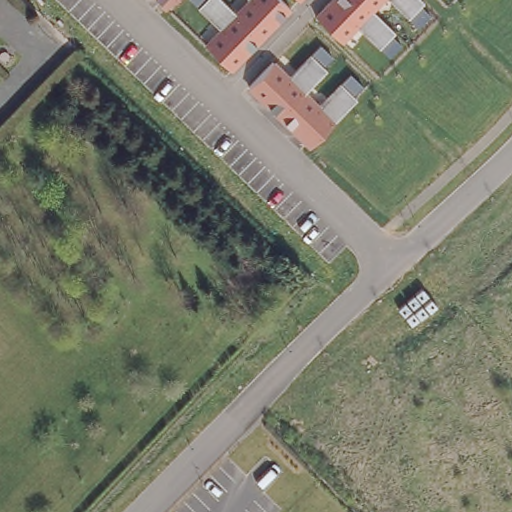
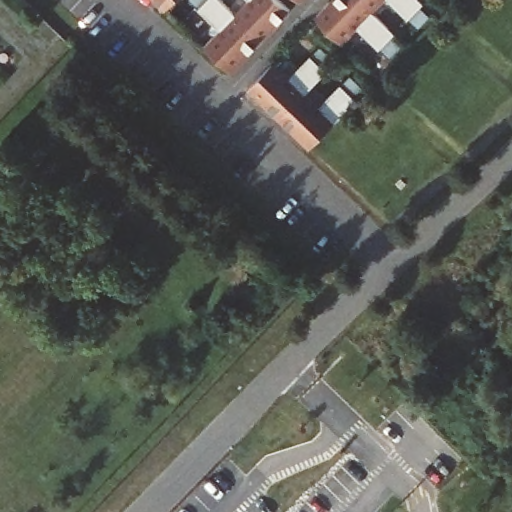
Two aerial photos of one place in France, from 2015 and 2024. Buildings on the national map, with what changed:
unchanged [(165,10),(155,0),(175,0),(165,10)]
unchanged [(289,9),(231,70),(207,46),(221,30),(192,0),(226,0),(238,12),(248,0),(281,0),(289,9)]
unchanged [(374,11),(397,32),(393,36),(402,44),(389,56),(356,26),(341,41),(316,16),(331,0),(385,0),(374,11)]
unchanged [(425,2),(422,6),(431,14),(419,27),(391,0),(423,0),(425,2)]
unchanged [(291,77),(321,44),(334,58),(326,67),(329,70),(308,93),(319,104),(353,71),(364,84),(355,95),(359,98),(309,146),(247,87),(274,59),(291,77)]

